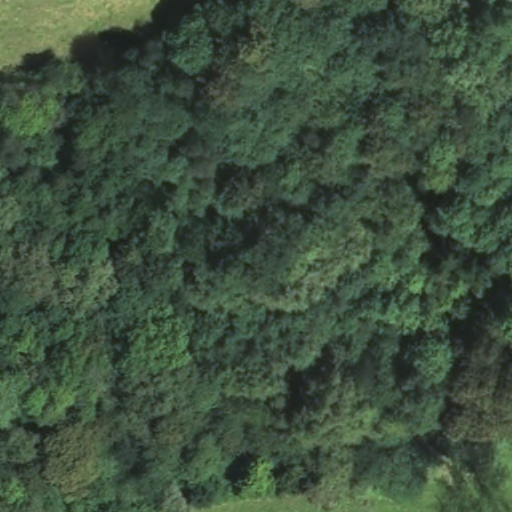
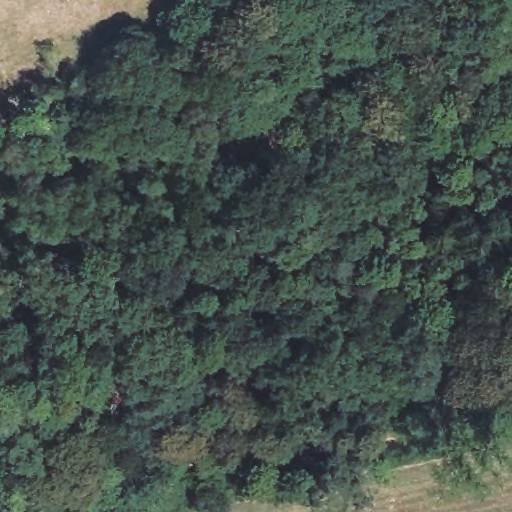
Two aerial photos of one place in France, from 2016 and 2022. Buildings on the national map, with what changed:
[]

